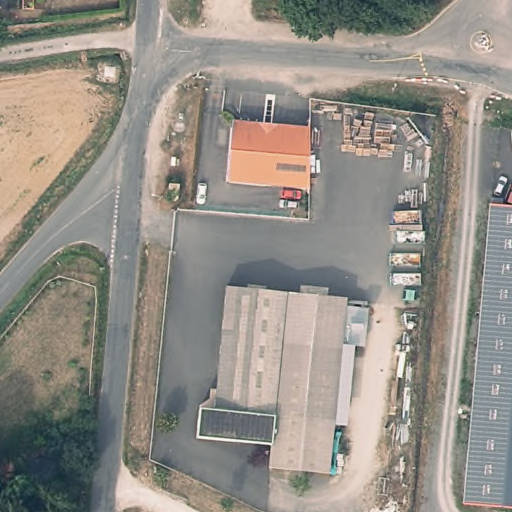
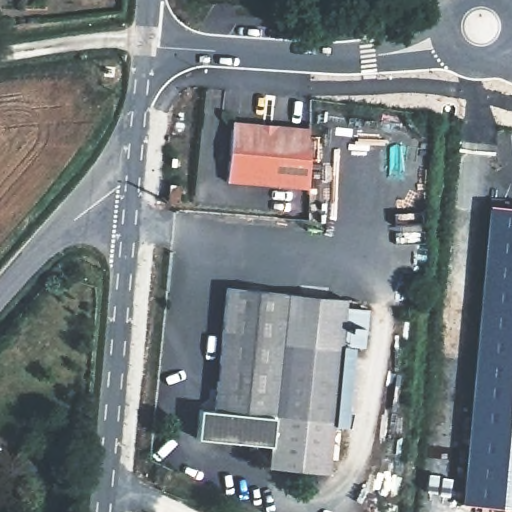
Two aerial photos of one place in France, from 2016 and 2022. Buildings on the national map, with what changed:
unchanged [(225,189),(229,129),(302,135),(304,195),(225,189)]
unchanged [(482,234),(481,231),(482,229),(483,209),(496,209),(512,210),(512,509),(466,507),(482,234)]
unchanged [(347,342),(337,341),(331,422),(318,421),(315,471),(255,467),(257,442),(200,438),(202,408),(217,409),(227,285),(350,294),(347,342)]

